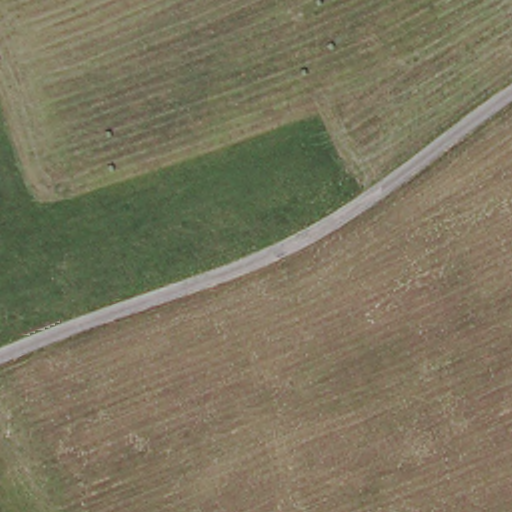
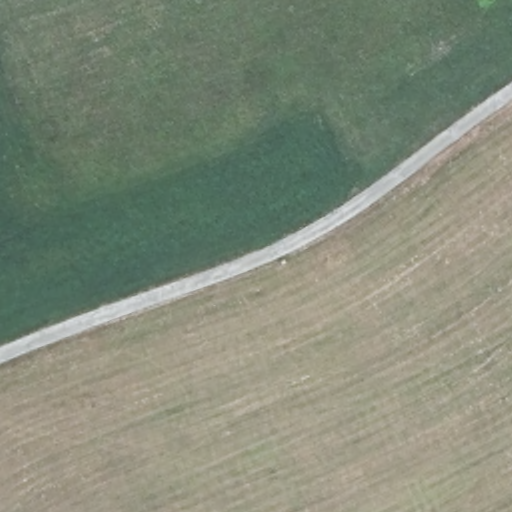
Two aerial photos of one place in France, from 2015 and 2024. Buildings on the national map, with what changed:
[]

